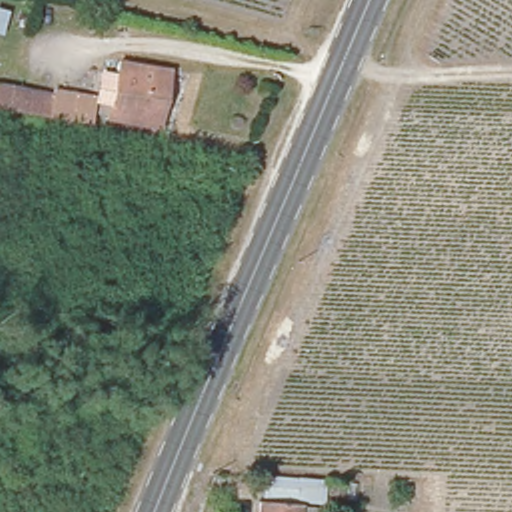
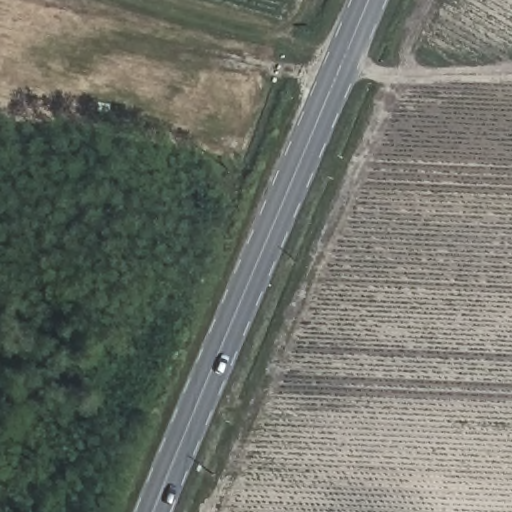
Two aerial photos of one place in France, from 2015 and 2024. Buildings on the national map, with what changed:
demolished [(147,106),(143,127),(111,120),(102,119),(118,61),(172,71),(169,83),(162,110),(147,106)]
demolished [(51,95),(52,88),(92,96),(89,126),(0,113),(0,83),(51,95)]
demolished [(261,502),(305,503),(305,512),(260,512),(261,502)]

